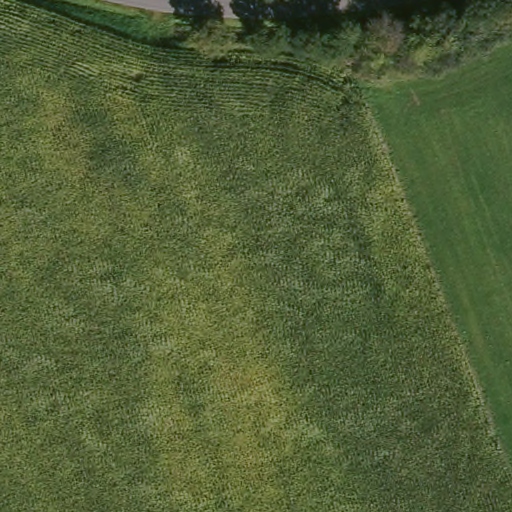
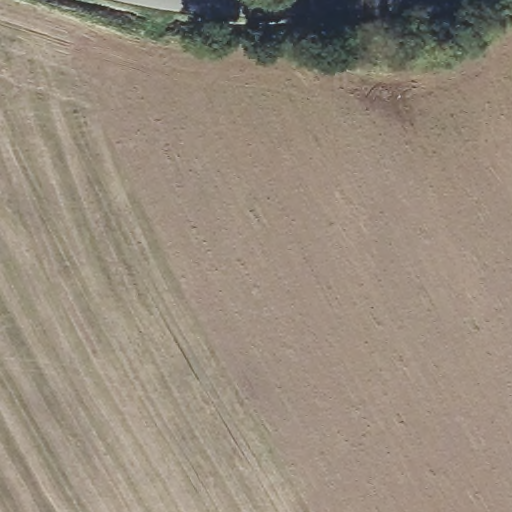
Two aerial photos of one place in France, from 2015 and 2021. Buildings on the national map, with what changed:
[]

